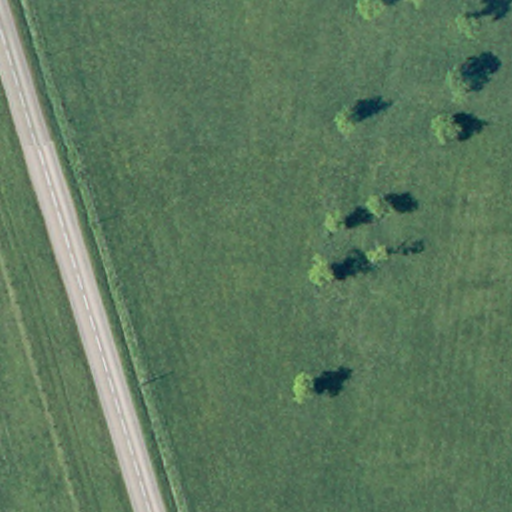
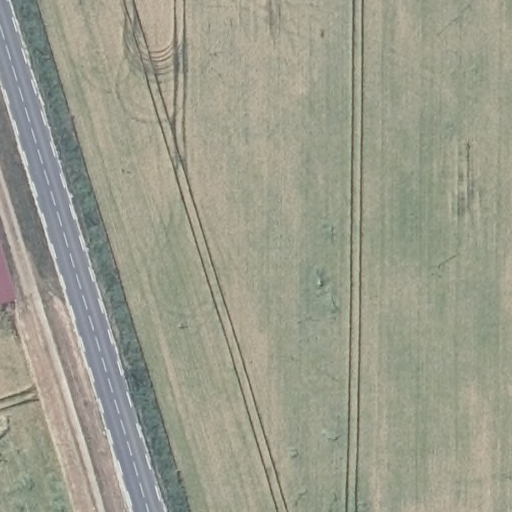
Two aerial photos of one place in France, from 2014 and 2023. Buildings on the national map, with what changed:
new [(14,300),(0,303),(0,254),(14,300)]

